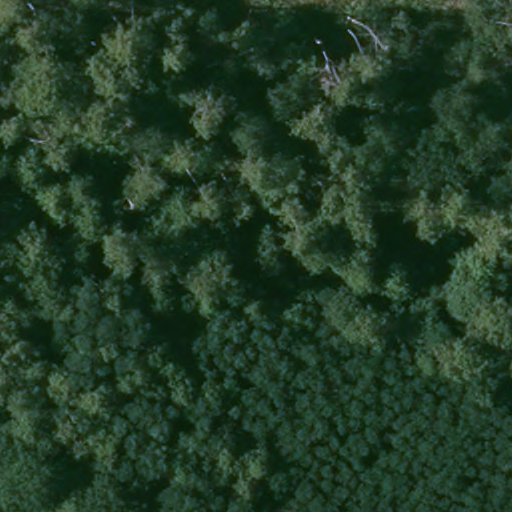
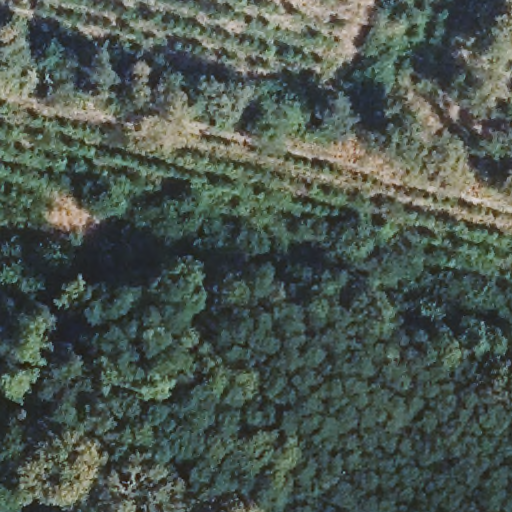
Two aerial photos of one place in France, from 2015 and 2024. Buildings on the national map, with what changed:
[]

